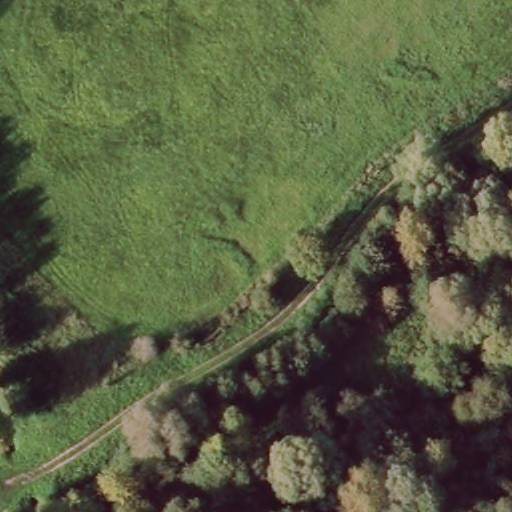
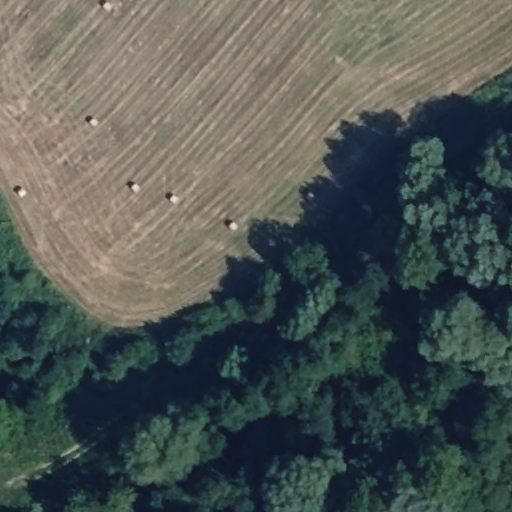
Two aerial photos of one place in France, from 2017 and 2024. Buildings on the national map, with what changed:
unchanged [(139,506),(134,512),(105,512),(125,493),(139,506)]

